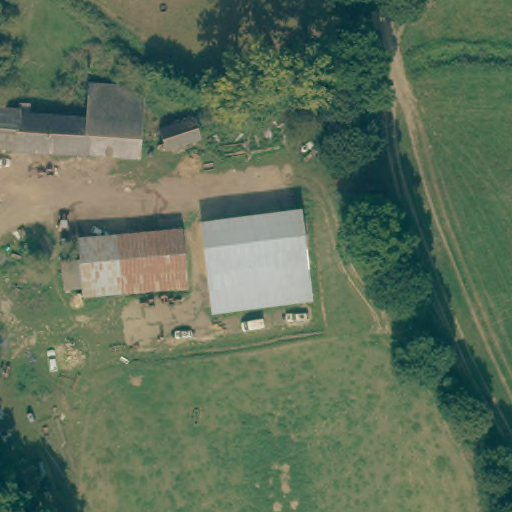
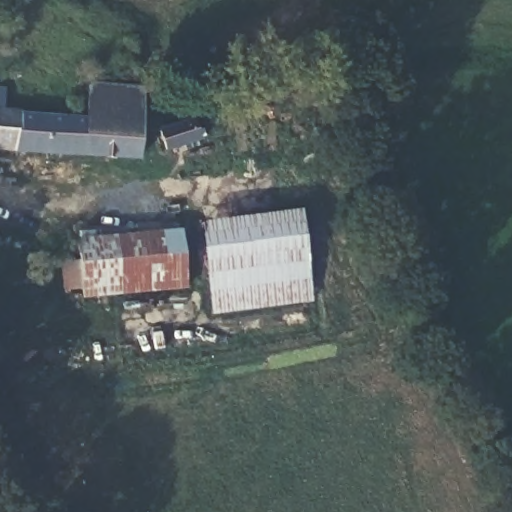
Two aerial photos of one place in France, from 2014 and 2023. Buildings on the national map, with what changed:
unchanged [(0,150),(0,110),(14,111),(14,119),(80,122),(83,86),(138,90),(133,156),(0,150)]
unchanged [(168,150),(162,132),(193,122),(198,139),(168,150)]
unchanged [(300,211),(314,300),(215,315),(202,227),(300,211)]
unchanged [(80,276),(62,276),(62,252),(80,252),(81,227),(181,228),(182,282),(80,283),(80,276)]
unchanged [(0,480),(3,491),(9,512),(0,512),(0,480)]

